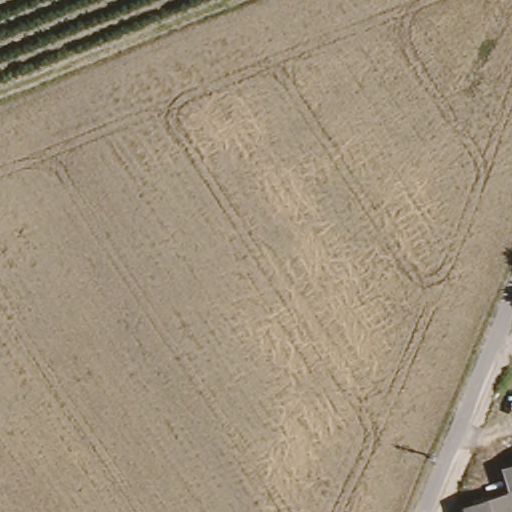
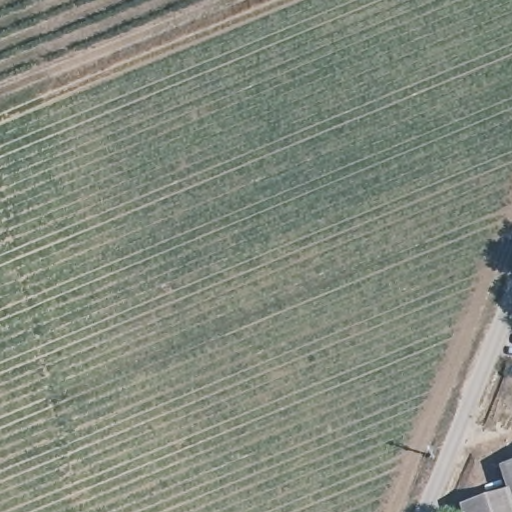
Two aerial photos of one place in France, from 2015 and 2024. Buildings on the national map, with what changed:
unchanged [(462,508),(511,493),(502,463),(512,461),(512,512),(463,512),(462,508)]

